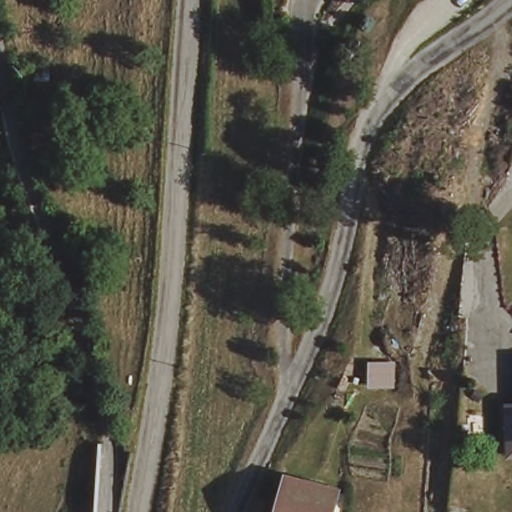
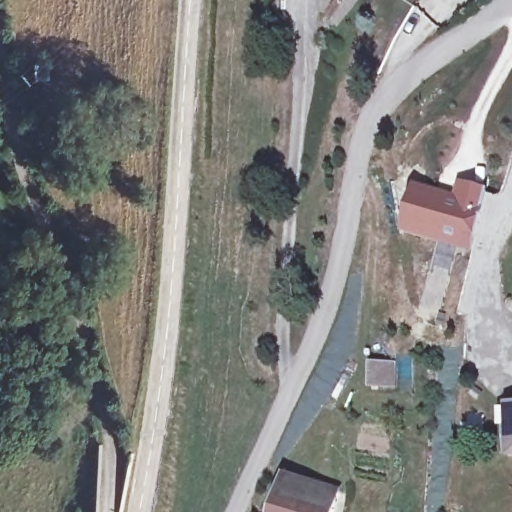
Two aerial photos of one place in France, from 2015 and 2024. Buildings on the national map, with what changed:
new [(416,182),(455,192),(459,180),(486,187),(469,250),(403,232),(416,182)]
unchanged [(512,398),(512,445),(499,445),(502,398),(512,398)]
unchanged [(334,493),(329,512),(280,512),(291,478),(334,493)]

